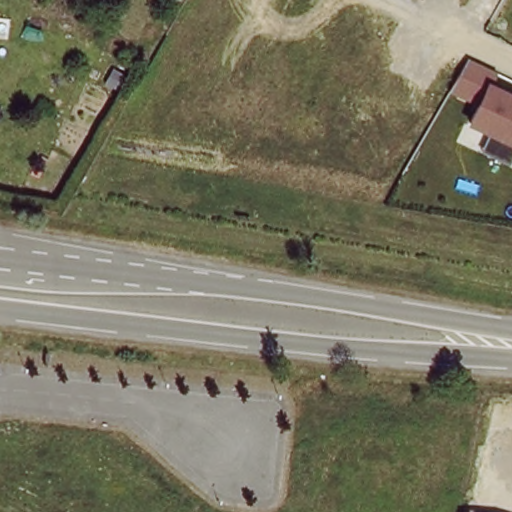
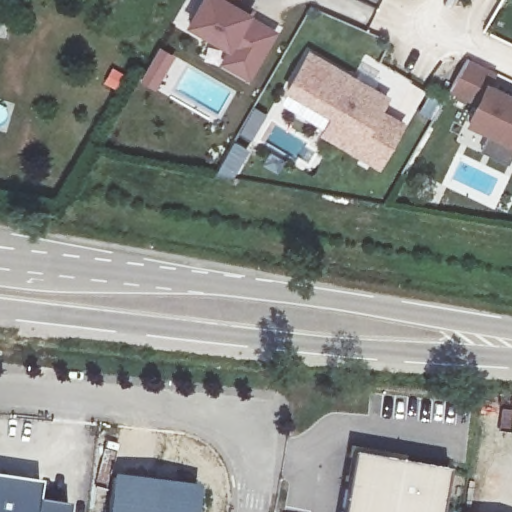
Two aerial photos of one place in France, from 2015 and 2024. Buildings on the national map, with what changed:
unchanged [(207,0),(240,0),(239,2),(255,11),(252,15),(251,17),(278,33),(261,65),(253,79),(227,64),(235,50),(193,27),(207,0)]
new [(376,93),(388,100),(380,112),(403,127),(379,167),(323,135),(334,118),(288,92),(310,55),(376,93)]
unchanged [(512,93),(512,161),(512,162),(484,150),(490,137),(465,126),(476,102),(449,91),(468,56),(499,71),(495,85),(512,93)]
new [(445,469),(437,512),(342,512),(353,453),(445,469)]
new [(41,478),(38,497),(69,501),(67,512),(0,512),(0,472),(41,478)]
new [(197,487),(194,512),(107,512),(112,478),(197,487)]

